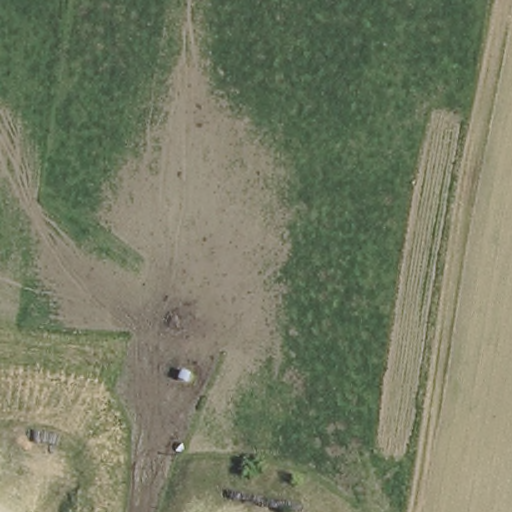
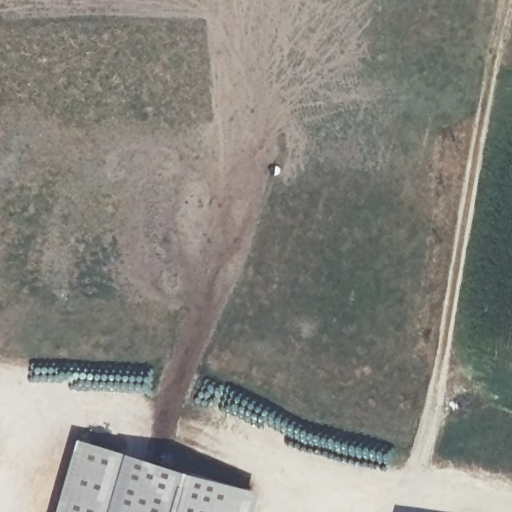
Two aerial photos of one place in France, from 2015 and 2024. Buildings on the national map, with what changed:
new [(72,437),(118,450),(252,487),(245,512),(52,512),(72,437)]

